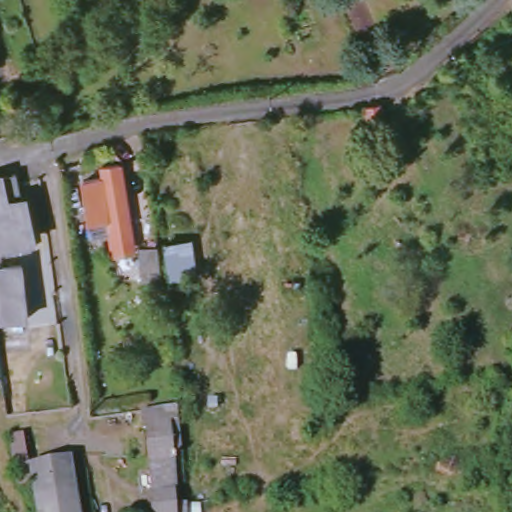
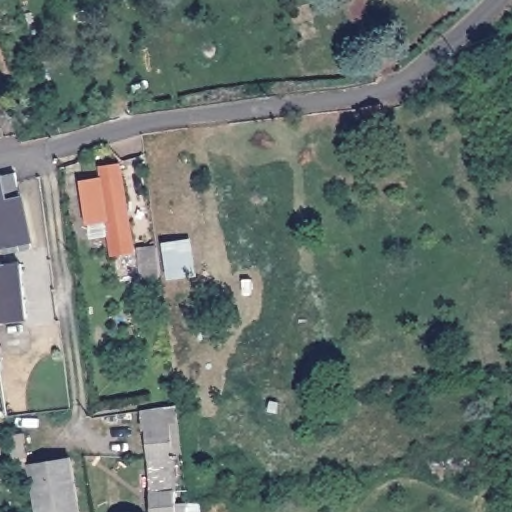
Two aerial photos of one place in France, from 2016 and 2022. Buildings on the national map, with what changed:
unchanged [(84,180),(104,177),(102,166),(120,163),(132,244),(112,247),(110,234),(92,236),(84,180)]
unchanged [(5,201),(23,199),(33,248),(7,254),(5,246),(0,247),(0,181),(5,201)]
unchanged [(190,238),(195,276),(168,278),(164,241),(190,238)]
unchanged [(157,245),(160,277),(143,279),(139,248),(157,245)]
unchanged [(22,263),(30,318),(4,321),(0,293),(0,291),(2,291),(0,280),(0,266),(4,265),(22,263)]
unchanged [(186,467),(210,470),(214,500),(191,502),(191,512),(153,512),(143,412),(182,407),(186,467)]
unchanged [(32,465),(77,458),(84,512),(37,512),(32,486),(15,488),(10,437),(27,434),(32,465)]

